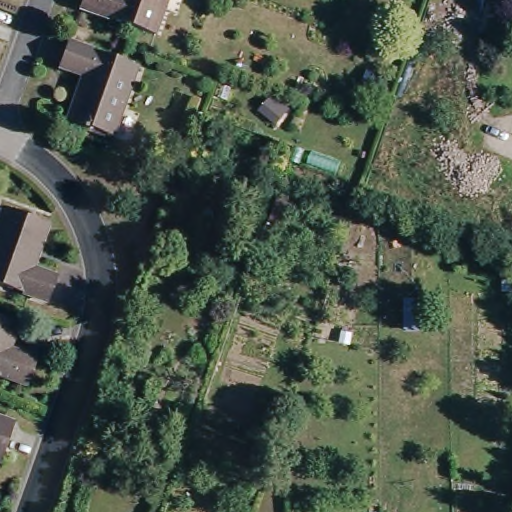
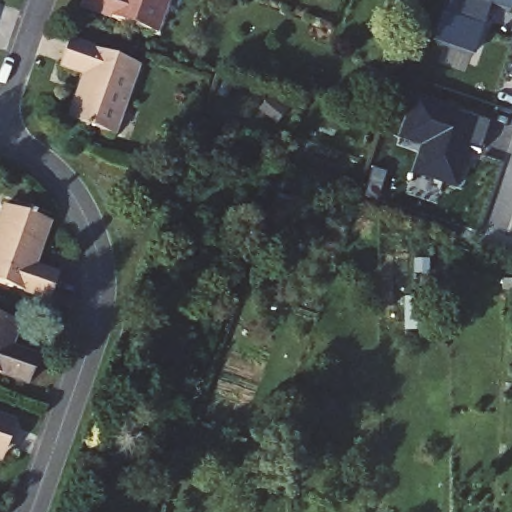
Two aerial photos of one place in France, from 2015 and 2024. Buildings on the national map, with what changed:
unchanged [(78,6),(80,0),(165,0),(153,33),(78,6)]
new [(432,43),(446,0),(512,0),(512,5),(510,11),(490,4),(472,56),(432,43)]
unchanged [(70,115),(87,70),(62,62),(71,35),(140,59),(114,130),(70,115)]
unchanged [(383,74),(370,84),(363,76),(376,66),(383,74)]
new [(412,94),(488,123),(479,153),(468,149),(455,189),(410,175),(420,146),(397,139),(412,94)]
unchanged [(27,263),(51,272),(42,297),(0,281),(0,201),(42,217),(27,263)]
unchanged [(5,344),(32,354),(22,381),(0,372),(0,312),(14,318),(5,344)]
unchanged [(4,447),(0,458),(0,412),(15,418),(4,447)]

